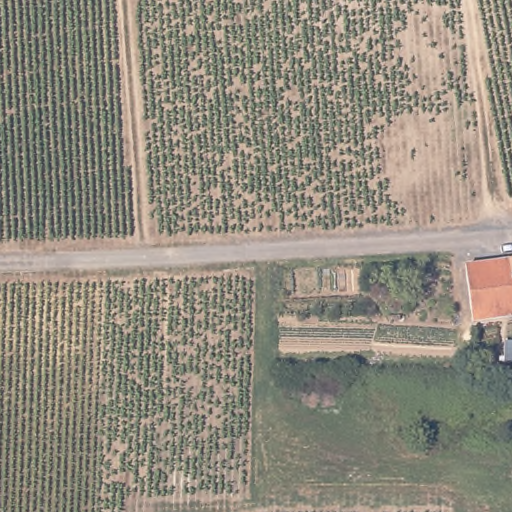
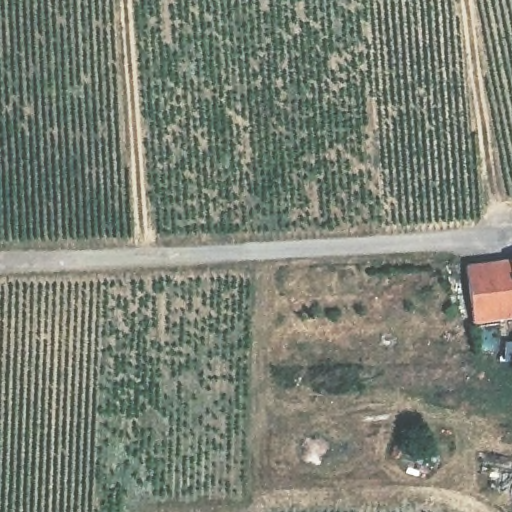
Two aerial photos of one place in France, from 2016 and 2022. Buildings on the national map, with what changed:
unchanged [(512,255),(512,294),(506,256),(512,255)]
unchanged [(512,304),(512,314),(471,319),(464,262),(506,256),(512,294),(512,304)]
unchanged [(512,339),(512,358),(503,358),(504,338),(512,339)]

